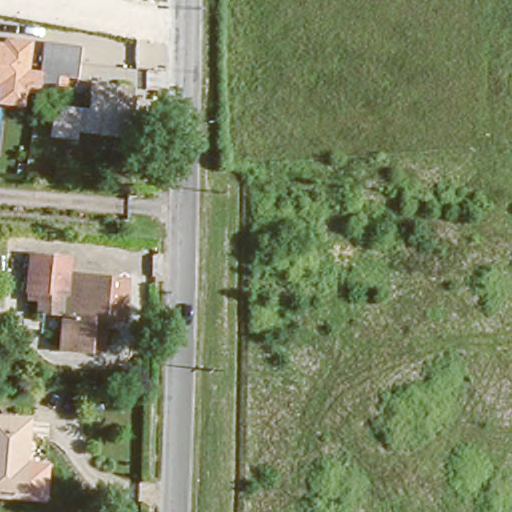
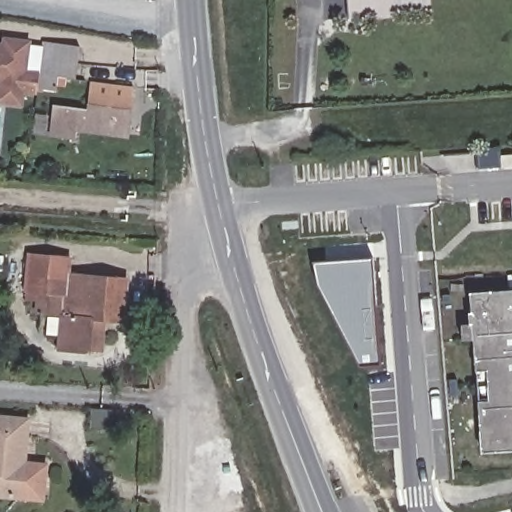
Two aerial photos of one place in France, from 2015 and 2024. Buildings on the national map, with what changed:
unchanged [(77,80),(44,79),(41,96),(27,97),(25,106),(0,106),(0,43),(2,43),(4,40),(34,42),(32,71),(42,71),(44,46),(80,49),(77,80)]
unchanged [(51,137),(52,129),(54,102),(90,105),(92,85),(138,90),(132,136),(69,130),(69,139),(51,137)]
new [(499,147),(500,156),(512,155),(512,166),(501,167),(478,170),(477,149),(499,147)]
unchanged [(31,250),(71,252),(70,268),(68,288),(29,285),(31,250)]
new [(318,284),(314,263),(372,259),(378,362),(357,364),(318,284)]
unchanged [(92,350),(62,348),(66,313),(68,288),(70,268),(128,275),(124,316),(106,315),(102,350),(92,350)]
unchanged [(66,313),(27,310),(29,285),(68,288),(66,313)]
new [(482,453),(471,293),(512,290),(512,450),(482,453)]
unchanged [(25,457),(48,458),(46,495),(0,491),(0,415),(27,417),(25,457)]

